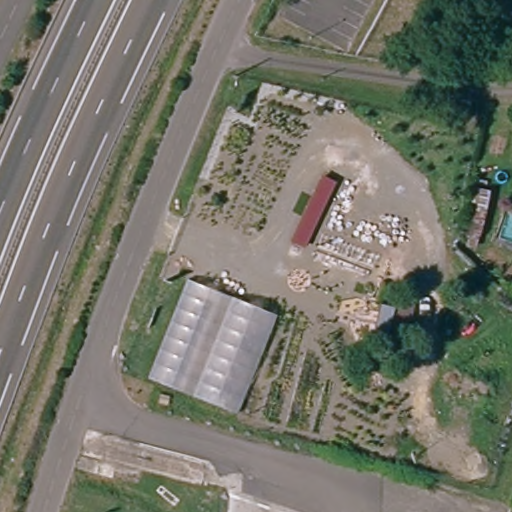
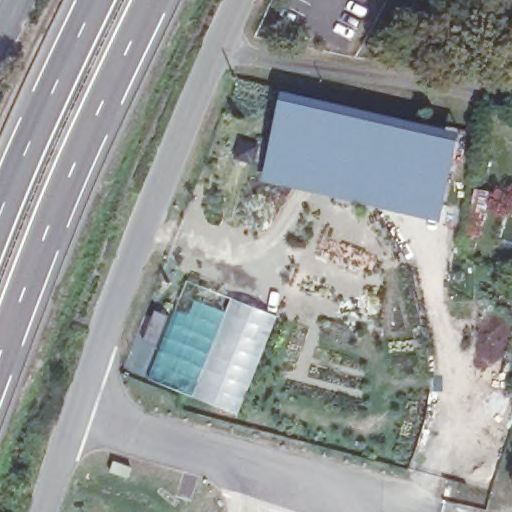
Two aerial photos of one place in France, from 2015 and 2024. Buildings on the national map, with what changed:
new [(280,95),(287,97),(320,102),(350,111),(458,134),(438,222),(259,181),(280,95)]
unchanged [(477,250),(463,246),(478,188),(492,191),(477,250)]
unchanged [(148,379),(188,280),(278,317),(239,415),(148,379)]

